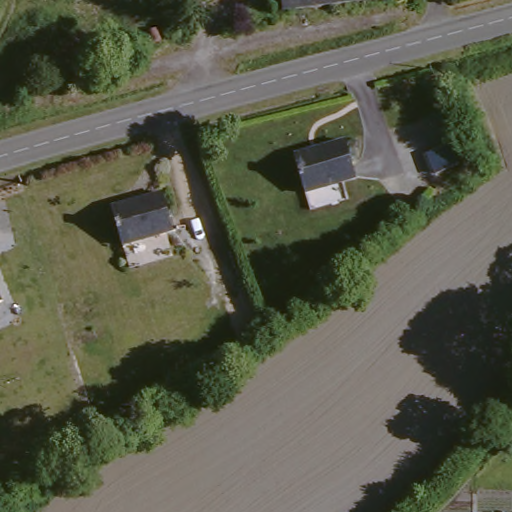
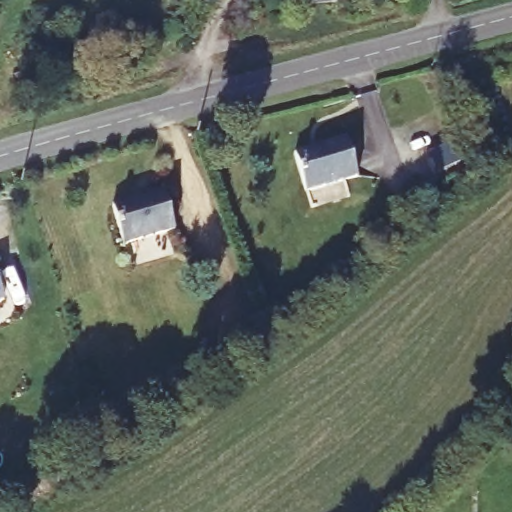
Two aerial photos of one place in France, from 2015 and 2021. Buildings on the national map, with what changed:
unchanged [(285,15),(283,0),(350,0),(285,15)]
unchanged [(293,155),(343,141),(354,180),(303,192),(293,155)]
unchanged [(427,153),(453,144),(462,164),(437,174),(427,153)]
unchanged [(109,208),(160,195),(172,235),(119,247),(109,208)]
unchanged [(1,300),(0,301),(0,298),(1,300)]

